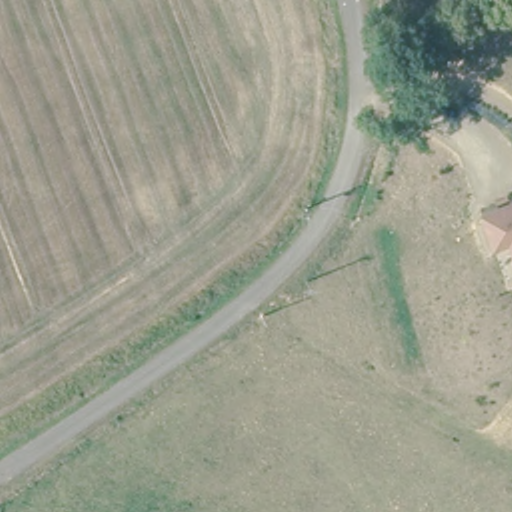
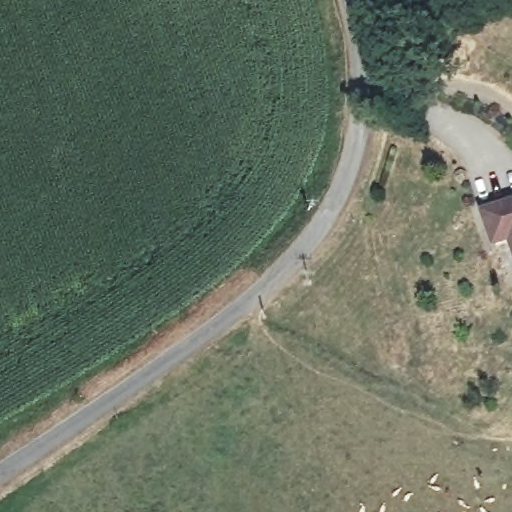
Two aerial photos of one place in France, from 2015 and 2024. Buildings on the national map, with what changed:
unchanged [(512,204),(512,248),(511,245),(495,252),(480,217),(512,204)]

